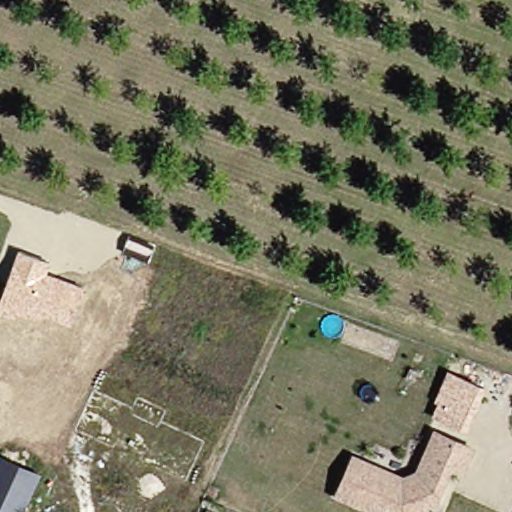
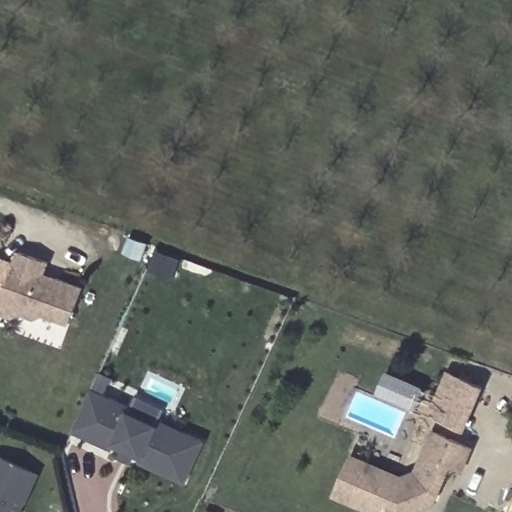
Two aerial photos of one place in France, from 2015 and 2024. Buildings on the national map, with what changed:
unchanged [(51,261),(46,274),(83,285),(71,325),(42,317),(34,321),(17,315),(15,319),(0,314),(0,304),(19,251),(51,261)]
new [(487,384),(469,431),(432,417),(437,402),(434,400),(447,370),(487,384)]
new [(129,408),(133,397),(162,410),(157,421),(205,442),(182,481),(138,461),(141,455),(113,443),(111,448),(71,430),(90,389),(129,408)]
unchanged [(471,446),(461,468),(450,463),(434,499),(410,510),(384,499),(379,511),(335,491),(352,454),(402,476),(416,470),(435,430),(471,446)]
unchanged [(23,512),(0,512),(0,454),(42,471),(23,512)]

